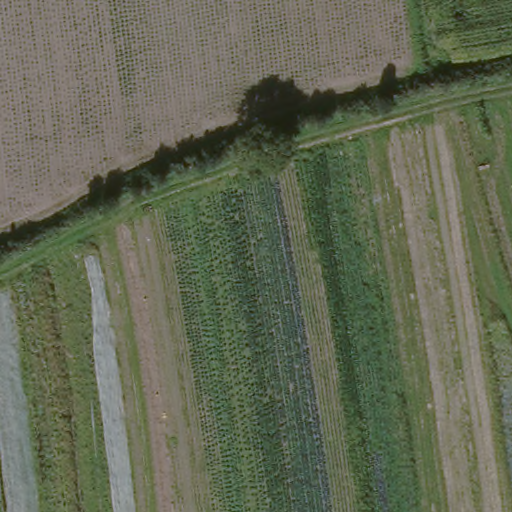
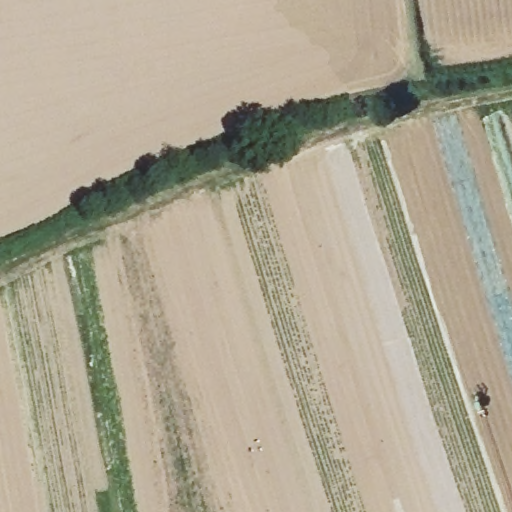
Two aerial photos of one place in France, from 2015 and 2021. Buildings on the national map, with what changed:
[]

